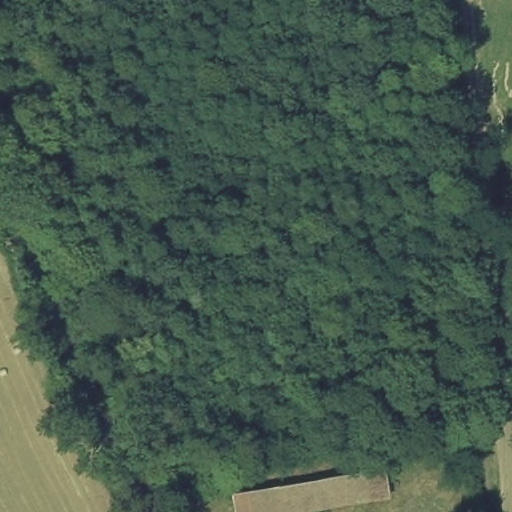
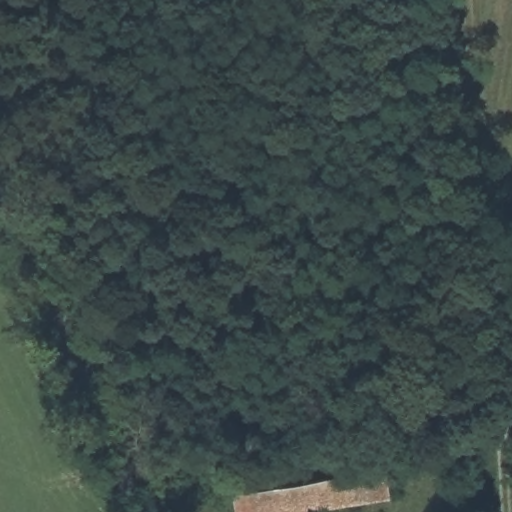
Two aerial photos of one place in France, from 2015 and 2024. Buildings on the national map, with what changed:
unchanged [(395,503),(347,512),(228,512),(223,496),(389,467),(395,503)]

